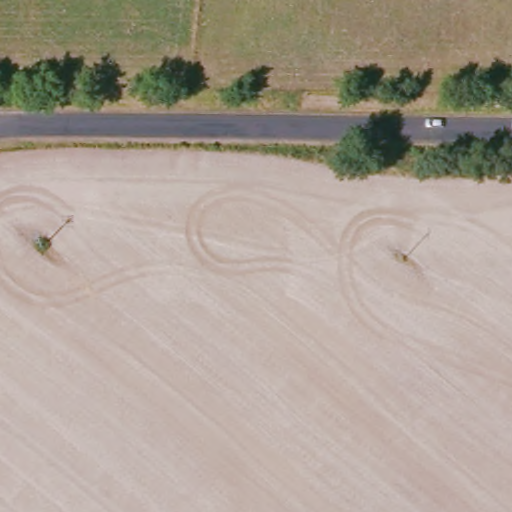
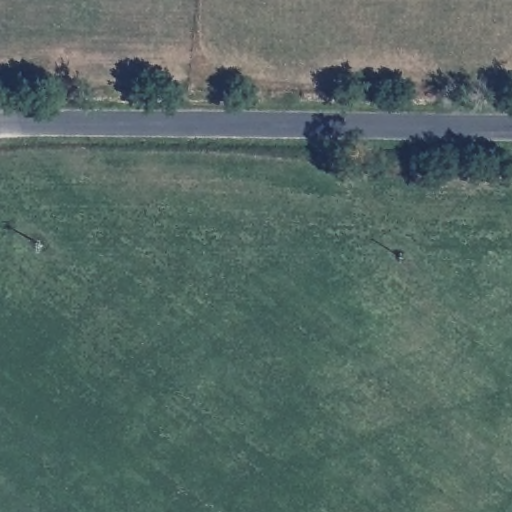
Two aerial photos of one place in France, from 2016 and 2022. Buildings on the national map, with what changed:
[]

